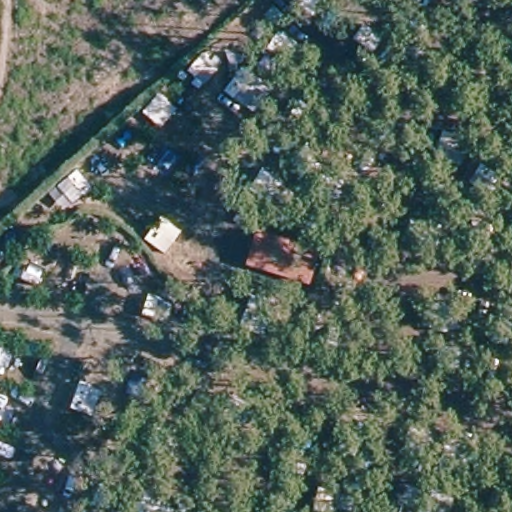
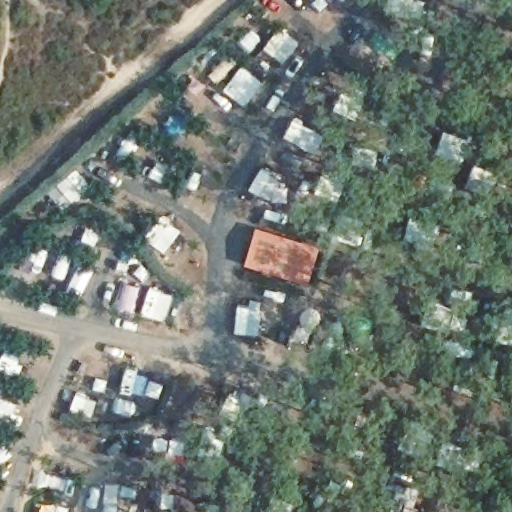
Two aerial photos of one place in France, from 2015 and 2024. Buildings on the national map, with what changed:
unchanged [(311,257),(303,284),(245,266),(254,237),(311,257)]

